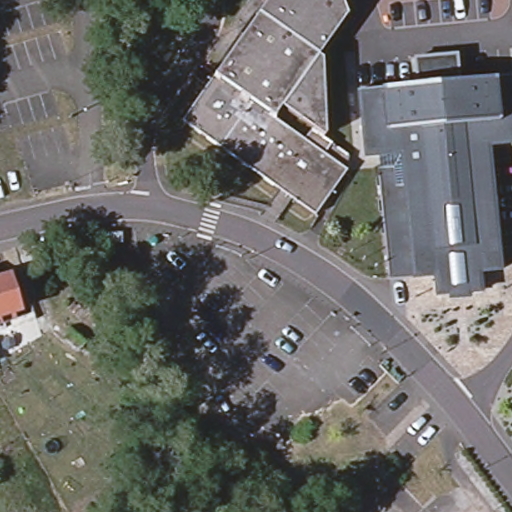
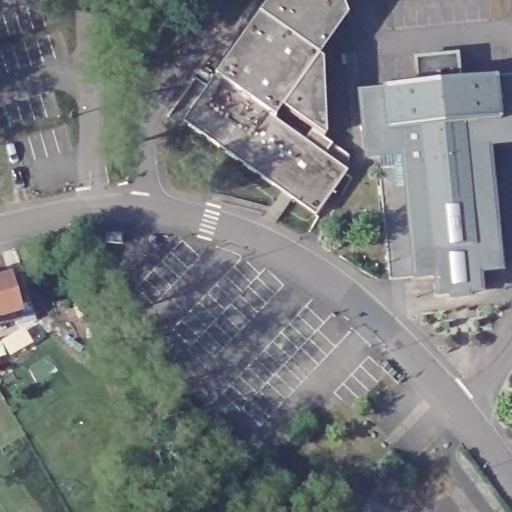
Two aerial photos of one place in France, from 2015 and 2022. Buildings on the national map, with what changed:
unchanged [(316,215),(257,173),(244,164),(217,145),(204,136),(183,121),(208,86),(211,81),(216,76),(270,0),(344,0),(350,17),(318,55),(324,60),(327,136),(349,158),(344,165),(348,170),(316,215)]
unchanged [(392,279),(380,156),(365,156),(360,90),(382,89),(417,83),(415,59),(463,55),(466,81),(497,77),(512,75),(512,141),(490,144),(502,268),(481,271),(483,290),(438,295),(436,275),(413,277),(392,279)]
unchanged [(122,234),(122,244),(104,244),(104,234),(122,234)]
unchanged [(14,308),(15,314),(0,318),(0,274),(11,271),(21,306),(14,308)]

